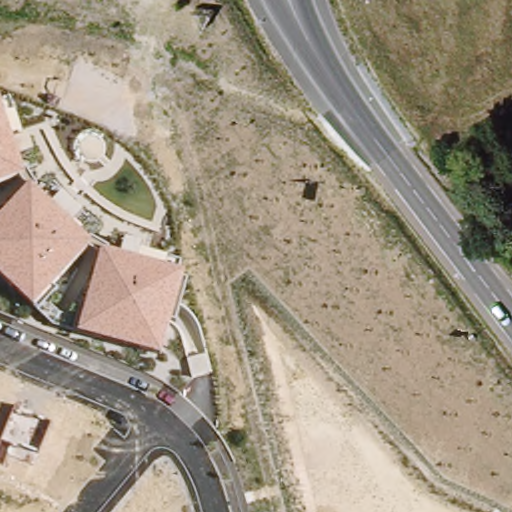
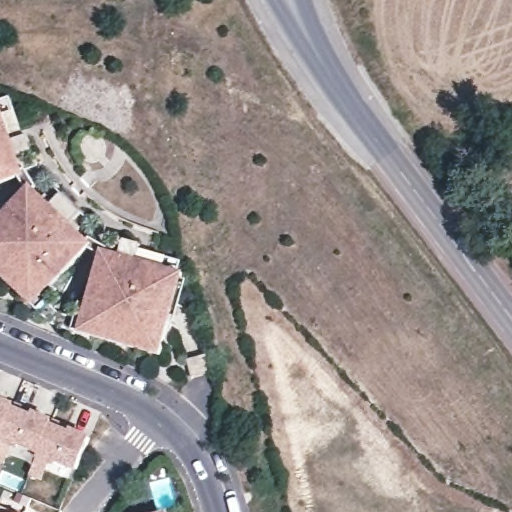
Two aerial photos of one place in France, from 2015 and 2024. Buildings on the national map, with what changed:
unchanged [(13,143),(28,138),(32,154),(20,159),(24,176),(0,185),(0,100),(13,143)]
unchanged [(31,186),(52,206),(63,195),(83,214),(72,226),(91,245),(34,308),(0,276),(0,219),(31,186)]
unchanged [(101,252),(120,257),(124,242),(142,247),(139,261),(184,274),(162,357),(79,333),(101,252)]
new [(92,436),(78,473),(51,461),(45,480),(32,476),(39,455),(13,445),(6,464),(0,462),(0,443),(1,440),(0,440),(0,398),(92,436)]
new [(12,512),(0,512),(0,507),(12,512)]

